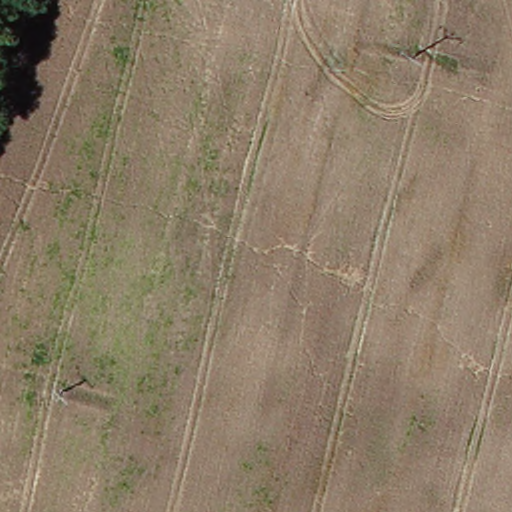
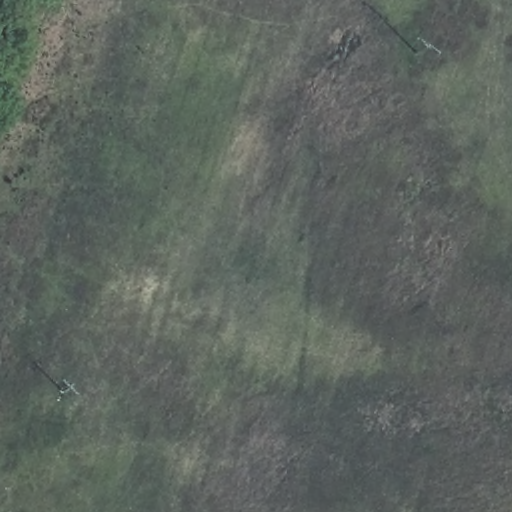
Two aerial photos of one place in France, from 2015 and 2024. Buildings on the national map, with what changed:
[]

